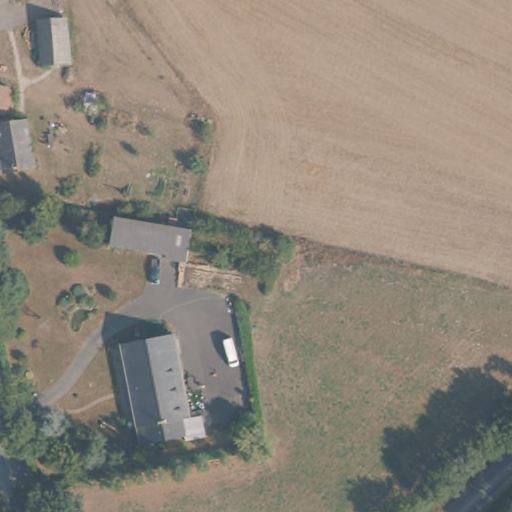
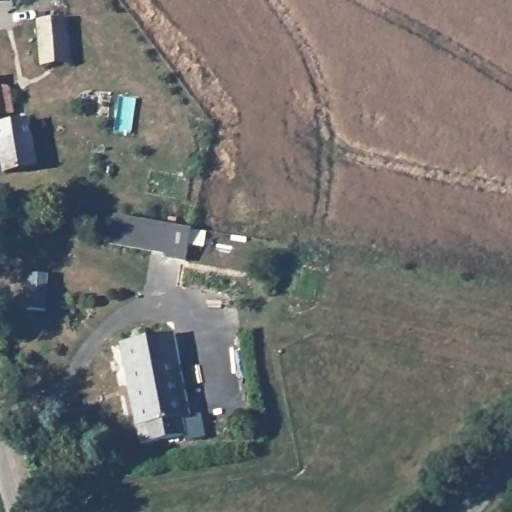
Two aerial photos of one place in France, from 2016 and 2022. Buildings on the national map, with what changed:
unchanged [(0,0),(5,0),(0,1),(0,0)]
unchanged [(37,24),(62,16),(74,57),(49,64),(37,24)]
unchanged [(43,154),(49,174),(27,181),(25,177),(0,183),(0,77),(10,74),(14,89),(17,99),(34,155),(43,154)]
unchanged [(175,254),(120,245),(125,214),(136,219),(181,227),(175,254)]
unchanged [(126,364),(177,352),(197,433),(146,445),(126,364)]

